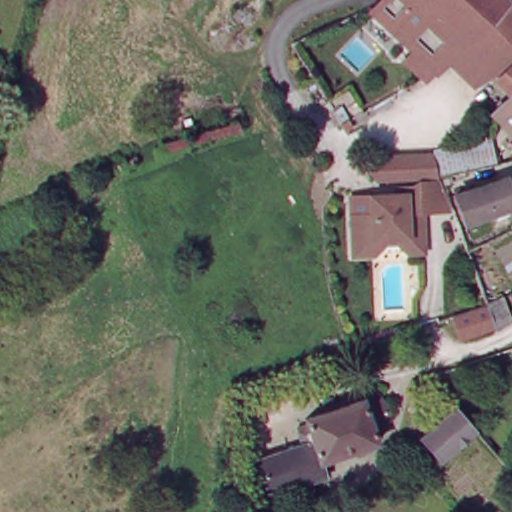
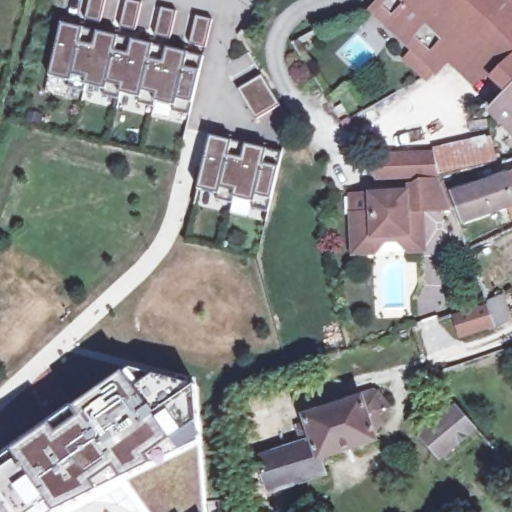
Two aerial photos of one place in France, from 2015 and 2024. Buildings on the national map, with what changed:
new [(90,0),(107,0),(102,23),(86,19),(90,0)]
new [(143,2),(136,31),(121,27),(128,0),(132,0),(143,2)]
unchanged [(427,77),(409,59),(417,50),(373,9),(381,0),(429,0),(469,37),(447,60),(438,70),(429,80),(427,77)]
unchanged [(512,5),(512,78),(504,71),(501,68),(469,37),(429,0),(506,0),(512,5)]
new [(178,11),(171,40),(156,35),(163,7),(178,11)]
new [(207,47),(191,44),(198,15),(214,19),(207,47)]
new [(96,34),(115,37),(133,42),(151,46),(168,50),(186,55),(202,58),(199,71),(191,104),(188,115),(171,111),(173,106),(154,102),(153,106),(136,103),(138,97),(118,94),(118,98),(102,95),(105,89),(84,85),(83,90),(67,86),(69,81),(49,76),(61,25),(82,30),(96,34)]
unchanged [(501,68),(491,78),(474,85),(447,60),(469,37),(501,68)]
new [(281,105),(257,120),(238,89),(264,75),(281,105)]
unchanged [(509,96),(512,93),(512,129),(495,111),(509,96)]
unchanged [(355,127),(350,131),(346,124),(351,120),(355,127)]
new [(198,189),(211,137),(231,142),(245,146),(265,150),(281,154),(276,168),(269,199),(266,211),(251,208),(252,202),(233,198),(233,203),(216,200),(218,194),(198,189)]
unchanged [(442,175),(436,155),(488,142),(494,165),(442,175)]
unchanged [(434,153),(435,176),(425,177),(406,178),(399,179),(375,180),(374,156),(434,153)]
unchanged [(463,221),(451,192),(512,172),(512,219),(506,206),(463,221)]
unchanged [(422,250),(408,250),(399,242),(399,237),(379,237),(380,243),(369,254),(353,254),(353,227),(351,215),(371,215),(370,197),(394,195),(394,187),(417,186),(417,180),(439,179),(444,194),(444,195),(449,209),(419,211),(420,217),(421,225),(422,250)]
unchanged [(490,303),(489,300),(504,294),(512,313),(512,322),(501,330),(500,328),(498,324),(464,336),(456,315),(490,303)]
new [(152,465),(121,480),(115,470),(93,482),(98,492),(57,512),(52,512),(46,504),(35,512),(16,512),(0,489),(0,473),(18,460),(13,451),(51,425),(57,433),(78,419),(71,410),(123,373),(135,389),(153,376),(193,386),(198,423),(173,441),(148,458),(152,465)]
unchanged [(260,461),(303,447),(298,430),(309,427),(308,420),(376,398),(389,415),(374,439),(377,445),(321,463),(324,478),(270,495),(260,461)]
unchanged [(476,428),(476,429),(441,457),(422,435),(457,407),(476,428)]
new [(152,465),(148,458),(173,441),(198,423),(204,512),(145,512),(121,480),(152,465)]

